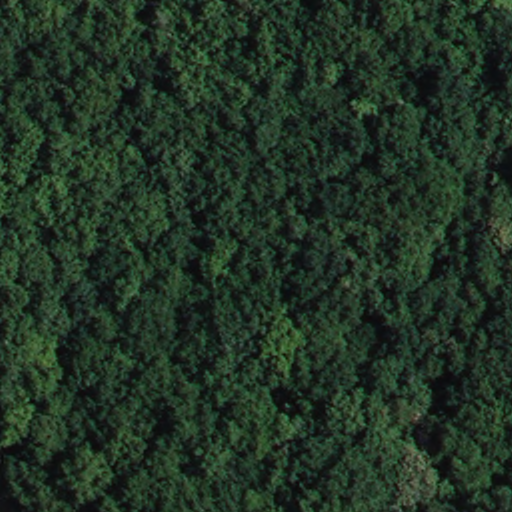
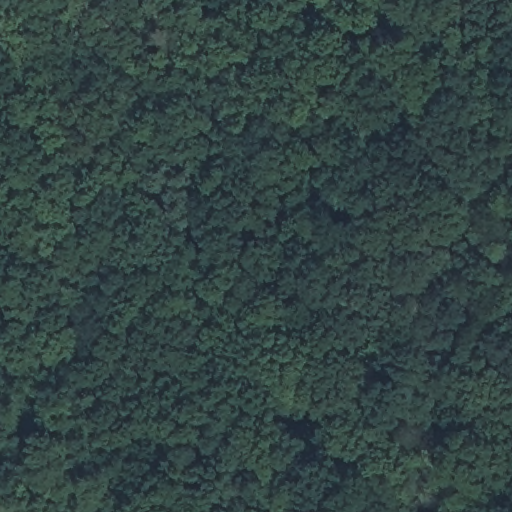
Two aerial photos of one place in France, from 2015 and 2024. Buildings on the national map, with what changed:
[]

